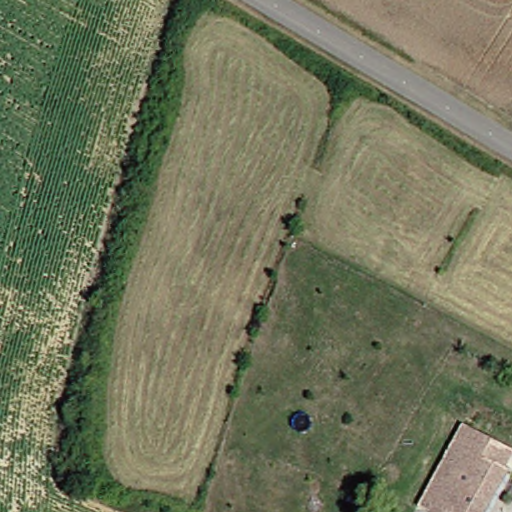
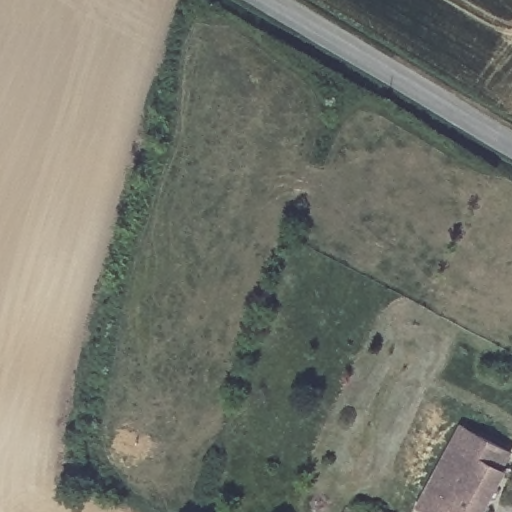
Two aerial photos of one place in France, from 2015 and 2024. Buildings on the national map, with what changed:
unchanged [(461,432),(511,461),(503,476),(455,450),(460,435),(461,432)]
unchanged [(508,478),(491,512),(421,512),(455,450),(503,476),(508,478)]
unchanged [(401,512),(379,512),(383,503),(401,510),(401,512)]

